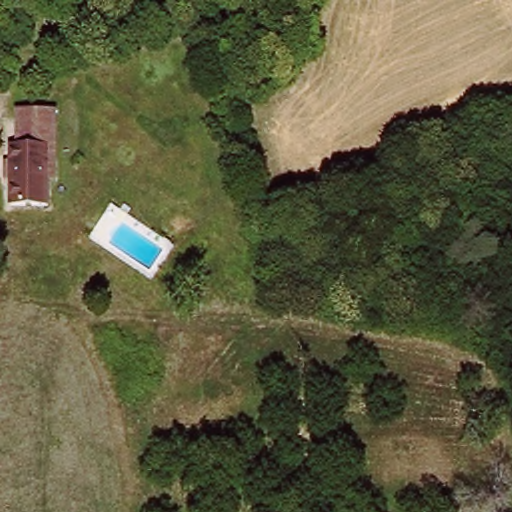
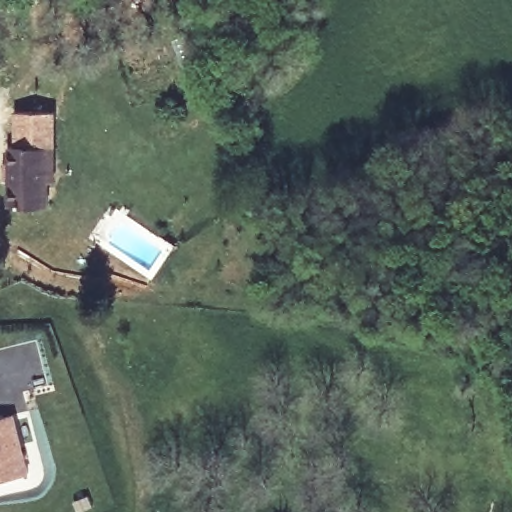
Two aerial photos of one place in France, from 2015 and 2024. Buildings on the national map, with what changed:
unchanged [(42,200),(2,201),(3,145),(7,145),(8,111),(49,113),(48,144),(40,145),(42,200)]
unchanged [(432,286),(436,267),(455,270),(451,290),(432,286)]
new [(30,476),(0,483),(0,416),(15,413),(30,476)]

